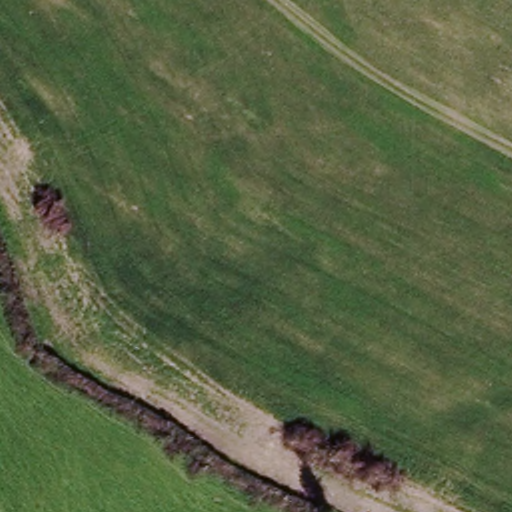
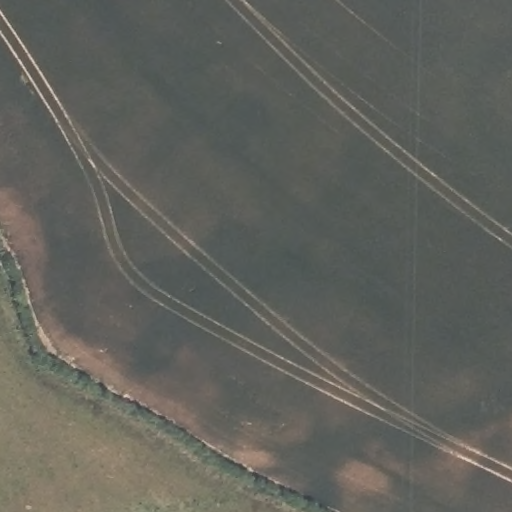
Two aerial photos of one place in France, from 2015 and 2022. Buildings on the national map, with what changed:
[]

